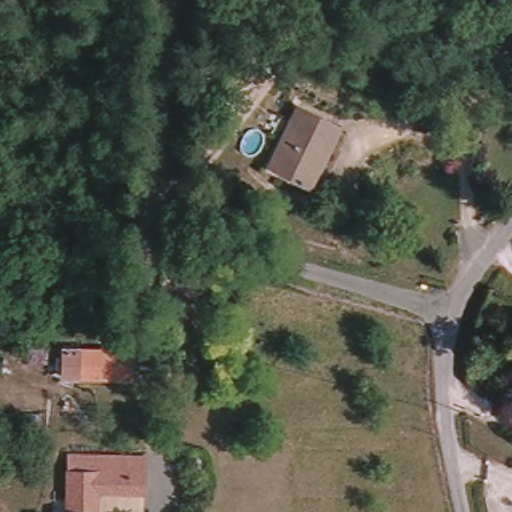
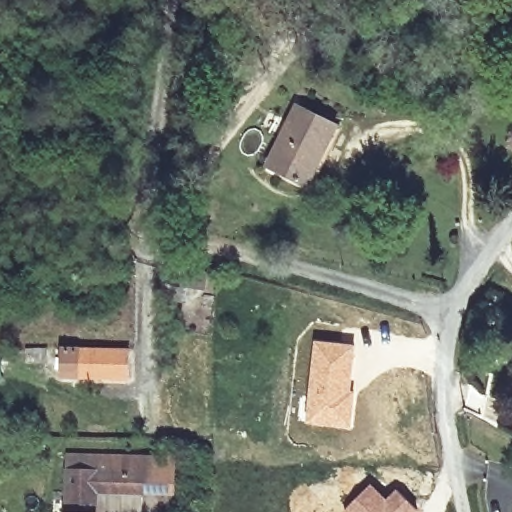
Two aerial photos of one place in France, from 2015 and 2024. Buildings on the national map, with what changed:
unchanged [(282,17),(261,37),(229,5),(233,0),(265,0),(282,17)]
unchanged [(453,22),(470,27),(466,40),(450,34),(453,22)]
unchanged [(475,22),(490,27),(485,45),(470,40),(475,22)]
unchanged [(295,107),(336,127),(309,185),(268,166),(295,107)]
unchanged [(177,270),(208,273),(206,290),(187,287),(186,302),(174,301),(175,286),(177,270)]
new [(313,340),(355,344),(350,430),(303,422),(313,340)]
unchanged [(46,349),(46,365),(28,367),(29,349),(46,349)]
unchanged [(139,383),(86,382),(74,381),(74,357),(87,357),(140,358),(139,383)]
unchanged [(145,457),(144,495),(142,495),(98,495),(97,512),(66,512),(67,456),(145,457)]
new [(386,497),(396,487),(419,512),(341,512),(371,482),(386,497)]
unchanged [(97,512),(98,495),(142,495),(142,512),(97,512)]

